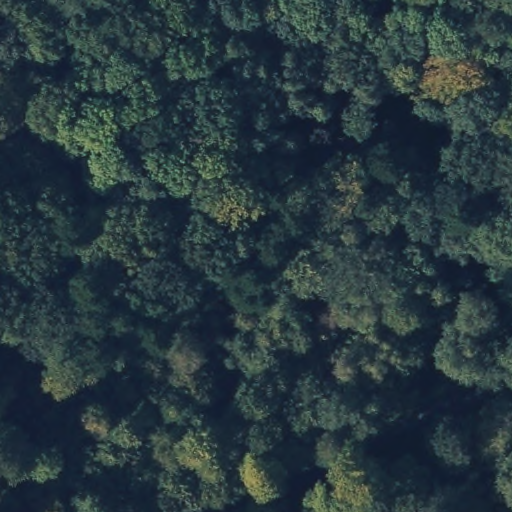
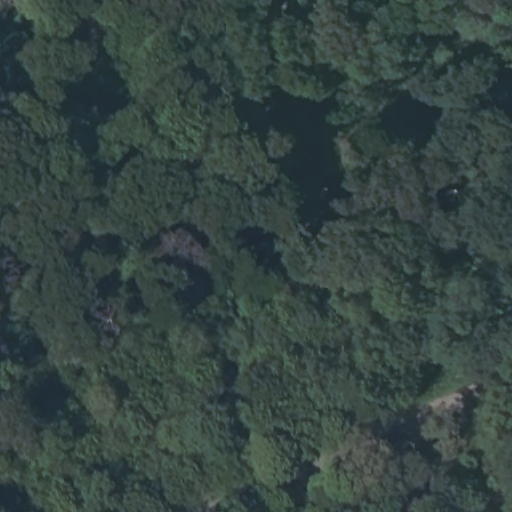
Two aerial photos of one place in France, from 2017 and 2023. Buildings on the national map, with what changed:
[]

